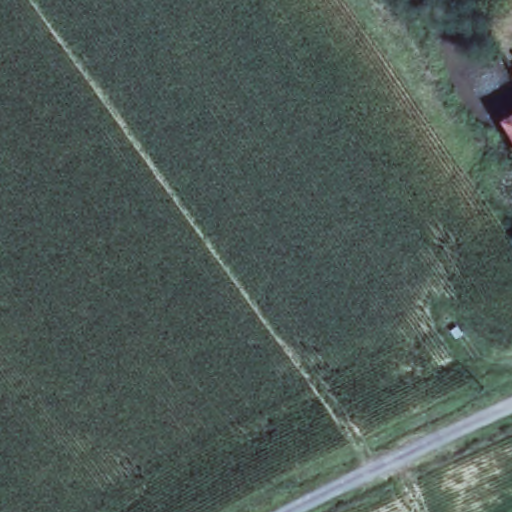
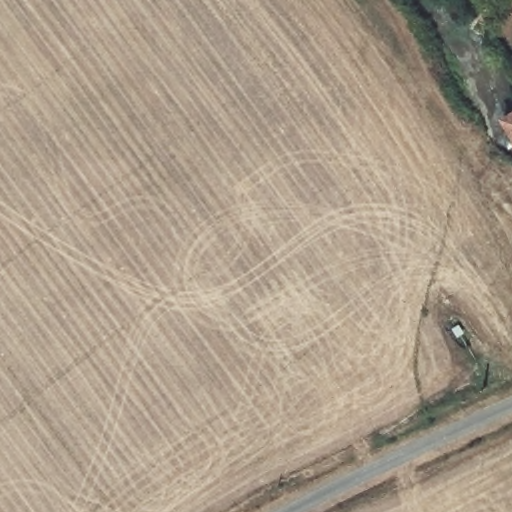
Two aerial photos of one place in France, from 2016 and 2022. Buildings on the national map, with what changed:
unchanged [(512,118),(512,134),(504,123),(512,118)]

